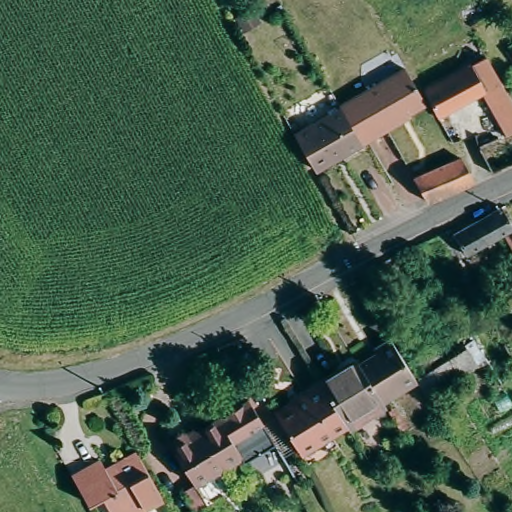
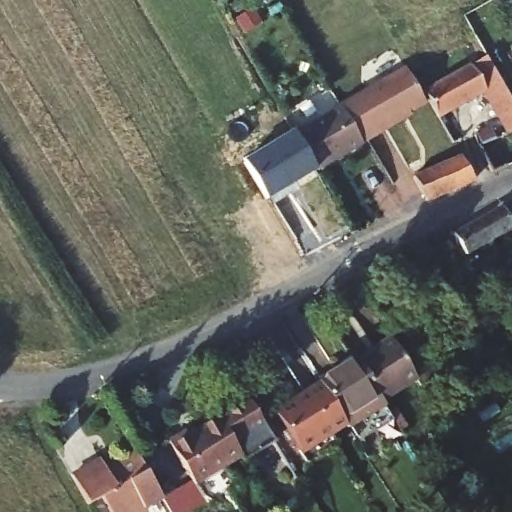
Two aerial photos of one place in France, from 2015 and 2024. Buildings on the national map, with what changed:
unchanged [(481,93),(437,118),(427,101),(425,96),(487,63),(500,83),(481,93)]
unchanged [(430,106),(364,151),(359,141),(338,106),(406,64),(425,96),(430,106)]
unchanged [(512,131),(502,136),(481,93),(500,83),(506,95),(512,107),(512,131)]
unchanged [(359,141),(335,154),(315,119),(338,106),(359,141)]
unchanged [(314,167),(293,132),(315,119),(335,154),(314,167)]
new [(293,132),(314,167),(315,173),(266,201),(243,161),(293,132)]
unchanged [(454,192),(427,204),(415,180),(465,159),(475,183),(454,192)]
unchanged [(454,225),(502,200),(512,220),(512,237),(472,258),(454,225)]
unchanged [(337,429),(334,424),(329,416),(311,387),(349,365),(370,353),(367,350),(383,341),(405,376),(405,377),(407,379),(372,401),(377,409),(339,433),(337,429)]
unchanged [(440,356),(452,375),(442,381),(430,362),(440,356)]
unchanged [(264,413),(280,403),(294,395),(292,392),(307,381),(307,382),(311,387),(329,416),(315,425),(300,434),(285,444),(264,413)]
unchanged [(200,430),(225,416),(249,456),(222,471),(198,431),(200,430)]
unchanged [(222,471),(199,484),(173,440),(190,431),(192,433),(198,431),(222,471)]
unchanged [(156,480),(167,499),(151,507),(154,512),(153,512),(119,512),(111,498),(97,505),(80,476),(109,461),(115,472),(127,466),(124,462),(141,453),(156,480)]

